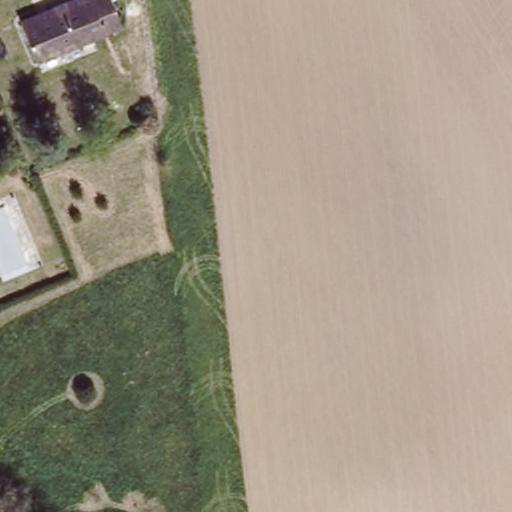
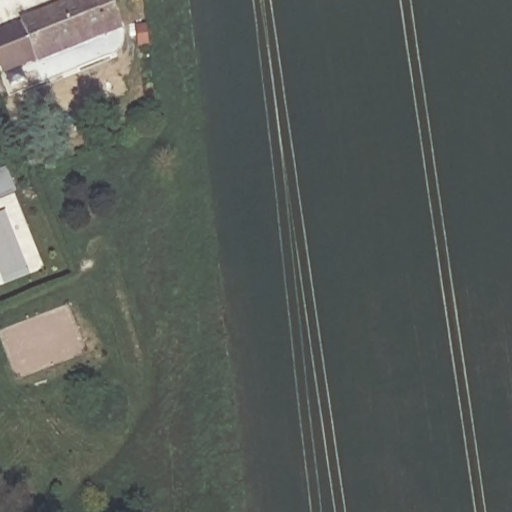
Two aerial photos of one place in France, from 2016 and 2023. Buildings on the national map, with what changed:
unchanged [(22,18),(68,0),(113,0),(123,25),(38,58),(22,18)]
new [(0,32),(23,21),(38,58),(3,74),(0,65),(0,32)]

